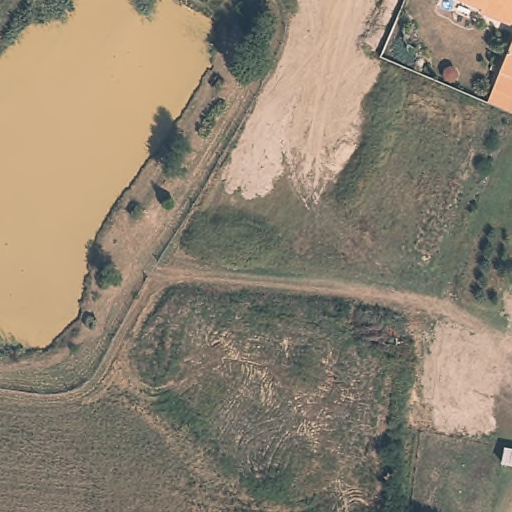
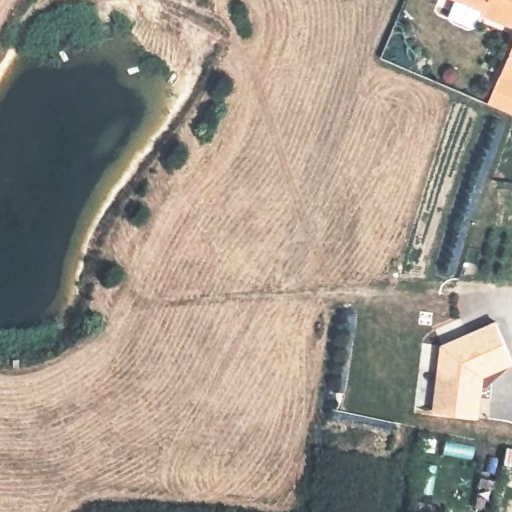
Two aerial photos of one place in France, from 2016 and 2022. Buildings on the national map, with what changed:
unchanged [(480,6),(465,0),(512,0),(512,23),(479,11),(480,6)]
unchanged [(494,93),(512,45),(512,99),(494,93)]
new [(512,361),(512,362),(482,376),(478,418),(433,413),(441,344),(494,321),(512,361)]
demolished [(463,329),(446,395),(467,400),(459,427),(416,417),(441,324),(463,329)]
unchanged [(512,449),(512,469),(498,466),(503,448),(512,449)]

